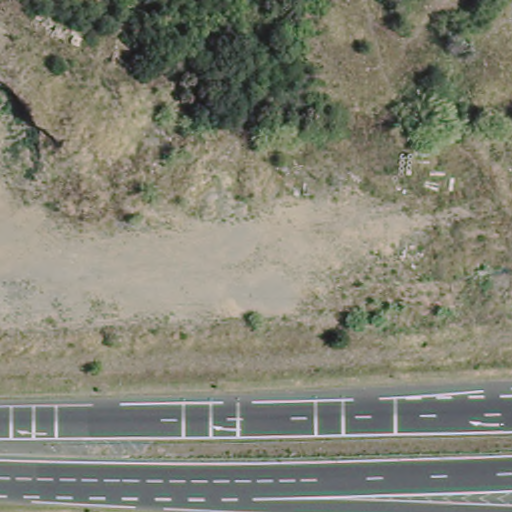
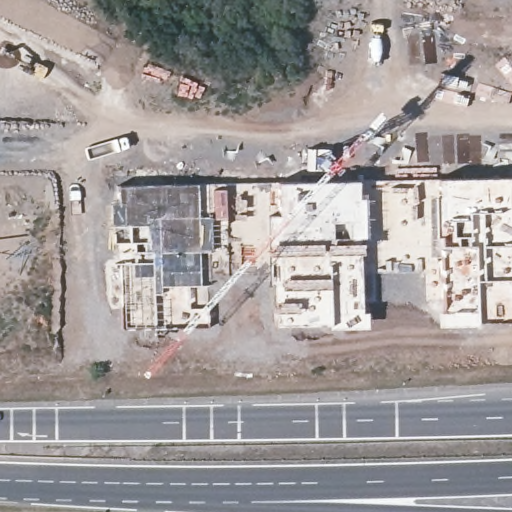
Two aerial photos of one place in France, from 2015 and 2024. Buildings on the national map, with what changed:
new [(119,187),(198,185),(278,184),(358,181),(439,180),(512,178),(512,321),(475,322),(476,326),(435,327),(435,312),(442,312),(441,299),(425,300),(424,271),(375,272),(375,300),(362,301),(363,312),(367,312),(367,329),(329,329),(329,325),(274,328),(273,312),(273,306),(270,307),(268,272),(229,276),(228,251),(213,252),(200,253),(201,286),(208,285),(210,327),(123,330),(121,265),(119,243),(114,244),(112,205),(119,204),(119,187)]

